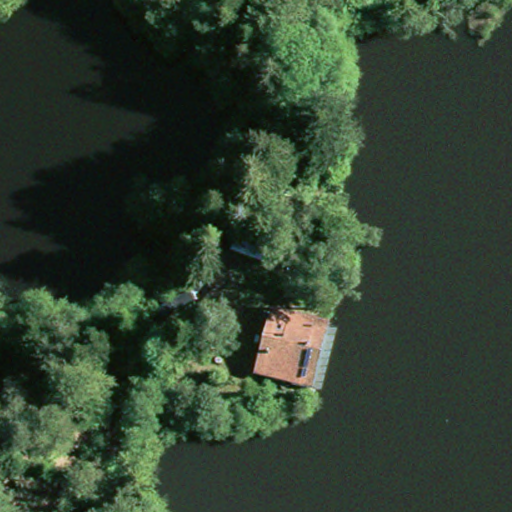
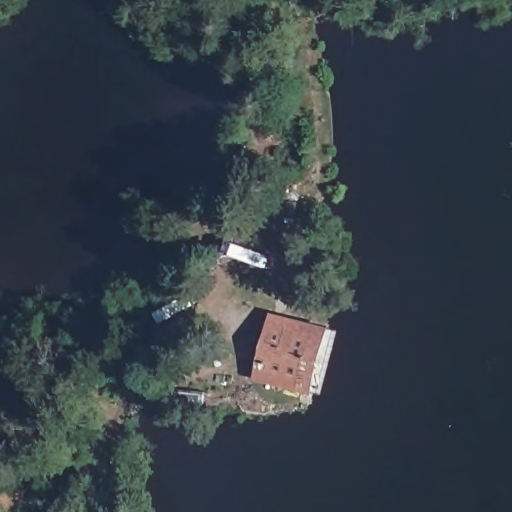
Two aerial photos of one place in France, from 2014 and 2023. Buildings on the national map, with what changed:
unchanged [(225,162),(218,178),(200,172),(207,155),(225,162)]
unchanged [(306,372),(303,382),(260,370),(274,324),(315,336),(306,372)]

